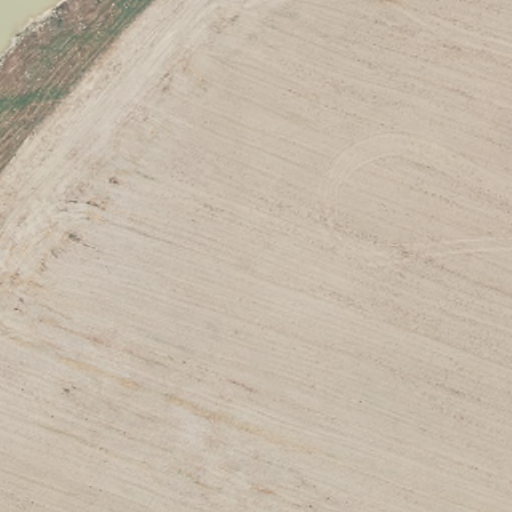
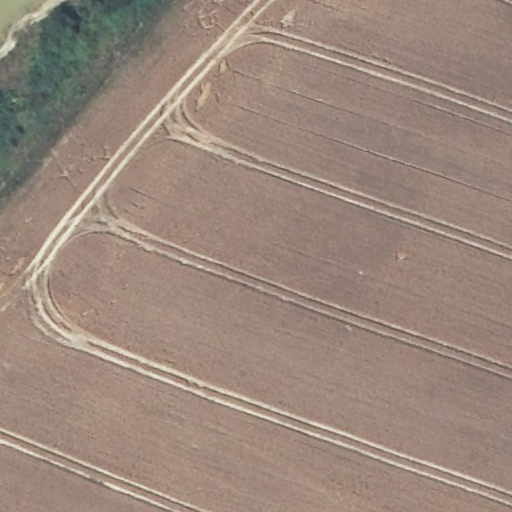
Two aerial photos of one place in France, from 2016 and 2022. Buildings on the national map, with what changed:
[]

